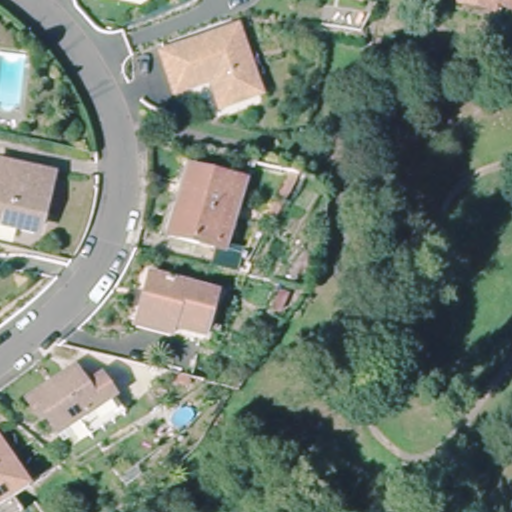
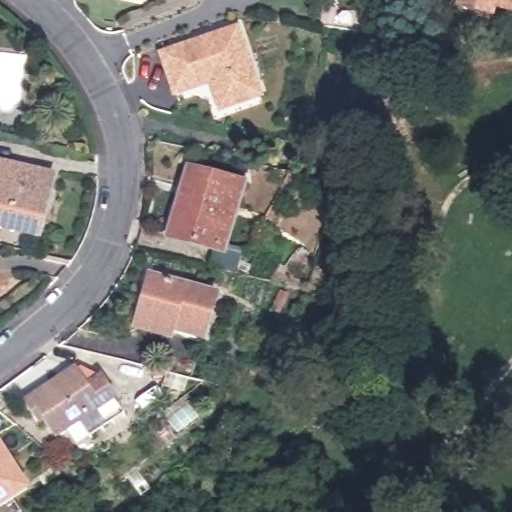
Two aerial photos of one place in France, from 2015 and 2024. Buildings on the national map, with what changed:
unchanged [(461,0),(512,0),(512,14),(491,8),(461,0)]
unchanged [(164,53),(237,28),(261,92),(222,104),(212,79),(177,90),(164,53)]
unchanged [(0,219),(0,163),(46,174),(32,227),(0,219)]
unchanged [(217,251),(177,239),(195,171),(235,182),(217,251)]
unchanged [(214,291),(204,334),(174,328),(171,339),(138,331),(150,275),(214,291)]
unchanged [(89,438),(79,426),(56,441),(42,421),(32,426),(21,408),(74,374),(84,392),(105,379),(117,400),(126,414),(89,438)]
unchanged [(0,505),(0,440),(29,486),(0,505)]

